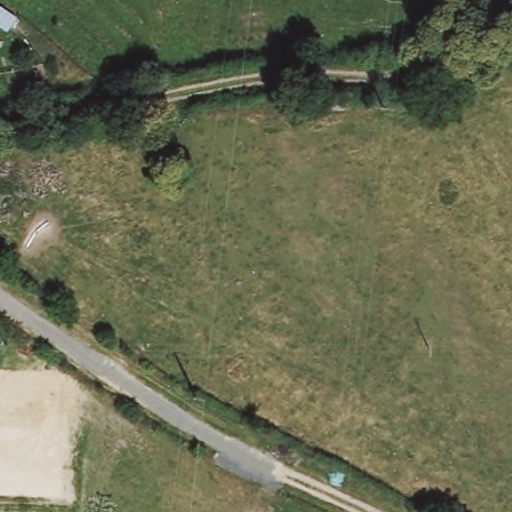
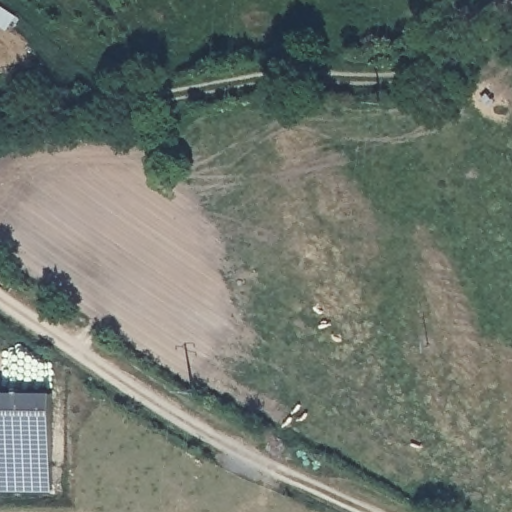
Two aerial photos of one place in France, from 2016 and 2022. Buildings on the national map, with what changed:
unchanged [(16,16),(6,30),(0,25),(0,6),(16,16)]
new [(40,396),(36,493),(0,492),(0,395),(40,396)]

